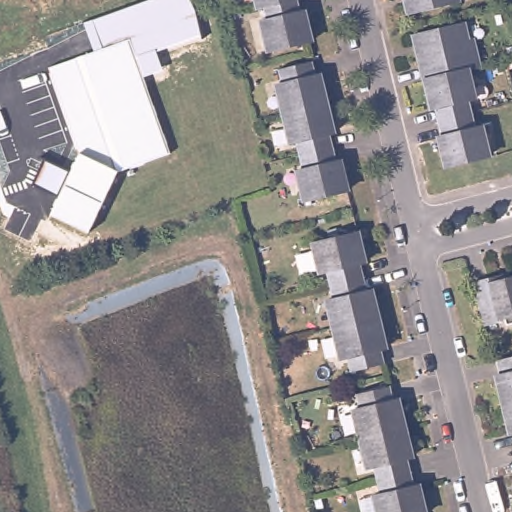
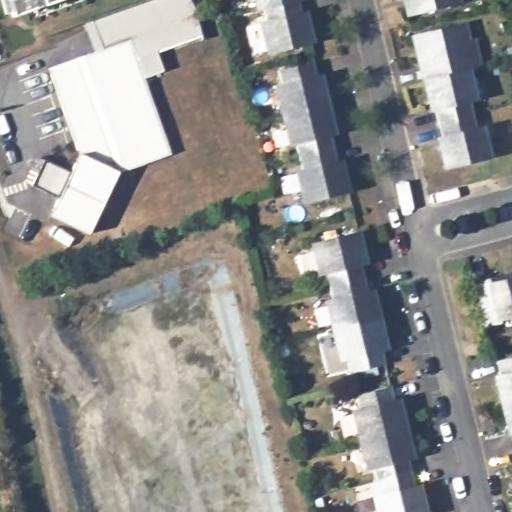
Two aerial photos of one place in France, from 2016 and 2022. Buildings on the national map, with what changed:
new [(10,16),(6,0),(53,0),(10,16)]
unchanged [(83,22),(146,0),(190,0),(196,11),(201,35),(156,51),(162,71),(142,76),(131,42),(96,55),(83,22)]
unchanged [(260,7),(256,8),(254,9),(252,0),(294,0),(260,7)]
unchanged [(263,21),(260,7),(294,0),(299,20),(302,19),(307,42),(266,51),(264,51),(257,22),(260,22),(263,21)]
unchanged [(401,0),(454,0),(455,4),(413,14),(405,16),(401,0)]
unchanged [(409,36),(418,34),(460,24),(464,40),(469,39),(476,69),(464,71),(420,82),(413,52),(409,36)]
unchanged [(53,208),(79,157),(50,71),(131,42),(170,157),(117,176),(86,234),(56,217),(50,215),(53,208)]
unchanged [(348,196),(304,206),(299,184),(298,177),(301,176),(303,176),(300,162),(297,147),(294,148),(291,149),(284,120),(277,91),(280,91),(283,90),(280,76),(314,67),(319,88),(322,87),(328,110),(333,132),(329,133),(334,154),(338,171),(339,175),(343,174),(348,196)]
unchanged [(484,157),(440,167),(435,146),(439,145),(437,137),(436,132),(434,123),(429,102),(425,102),(420,82),(464,71),(470,99),(464,101),(468,115),(469,121),(471,127),(471,130),(477,128),(484,157)]
unchanged [(326,274),(320,276),(312,244),(358,233),(364,255),(360,256),(365,277),(328,286),(326,274)]
unchanged [(506,325),(504,317),(499,319),(500,322),(484,327),(473,282),(504,275),(506,280),(512,278),(512,323),(506,325)]
unchanged [(365,277),(370,297),(373,296),(379,319),(332,330),(325,298),(331,297),(328,286),(365,277)]
unchanged [(379,319),(384,341),(380,342),(385,363),(348,372),(345,360),(340,362),(332,330),(379,319)]
unchanged [(497,382),(500,381),(495,361),(512,356),(512,402),(502,404),(497,382)]
unchanged [(351,407),(357,406),(354,394),(391,385),(396,406),(399,405),(404,428),(358,439),(351,407)]
unchanged [(512,402),(512,430),(511,426),(507,426),(502,404),(512,402)]
unchanged [(404,428),(409,450),(406,451),(411,472),(374,481),(372,469),(366,470),(358,439),(404,428)]
unchanged [(416,492),(420,492),(424,512),(376,512),(371,494),(377,492),(374,481),(411,472),(416,492)]

